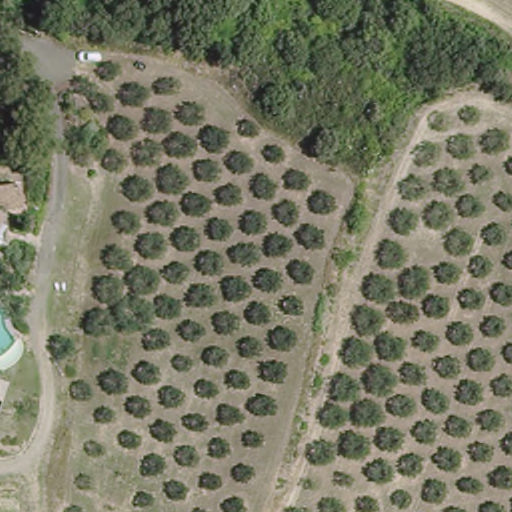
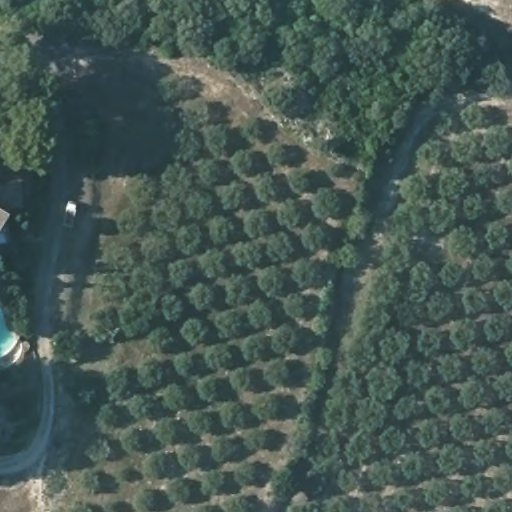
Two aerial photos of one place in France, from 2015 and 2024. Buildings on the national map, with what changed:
unchanged [(20,176),(23,213),(4,212),(4,205),(0,205),(0,177),(20,176)]
unchanged [(4,205),(4,212),(5,239),(0,239),(0,205),(4,205)]
unchanged [(5,239),(0,244),(0,239),(5,239)]

